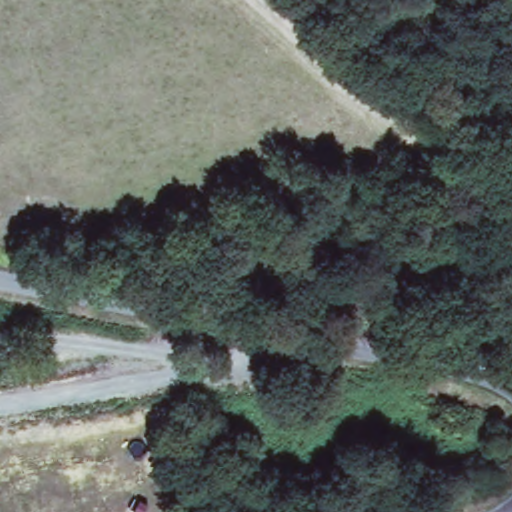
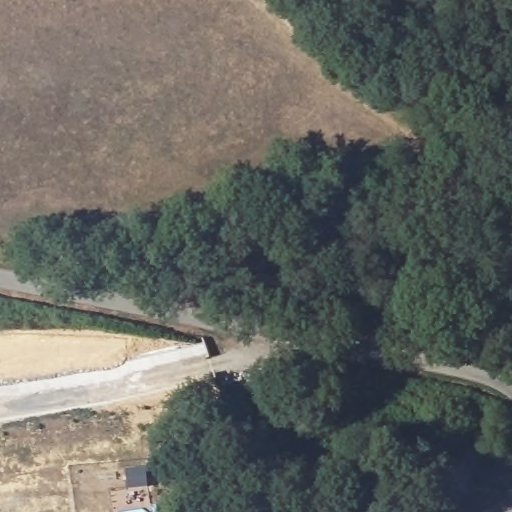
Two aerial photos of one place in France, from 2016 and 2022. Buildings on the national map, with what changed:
[]

